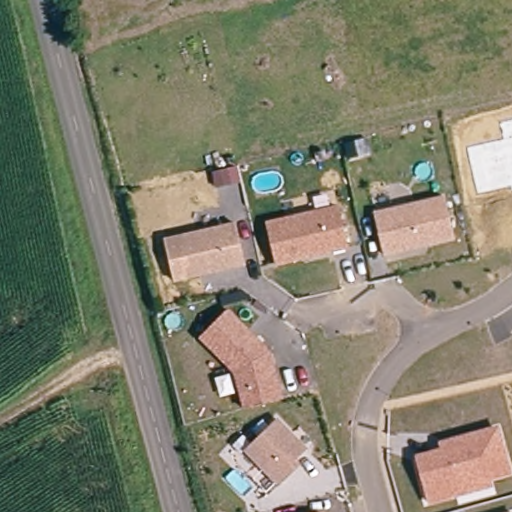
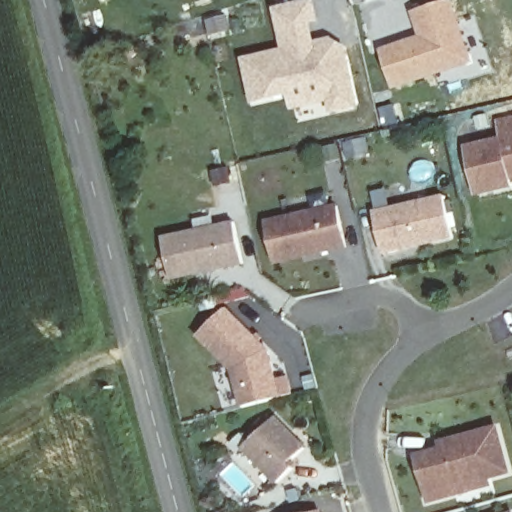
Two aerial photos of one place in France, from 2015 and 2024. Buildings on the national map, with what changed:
new [(311,0),(316,0),(321,23),(314,25),(317,41),(332,38),(348,49),(361,109),(330,116),(327,102),(291,111),(288,98),(253,106),(242,58),(282,49),(274,9),(311,0)]
new [(474,64),(394,91),(379,51),(419,38),(410,13),(450,0),(452,0),(474,64)]
new [(477,198),(466,147),(502,138),(498,121),(512,117),(512,190),(477,198)]
unchanged [(365,156),(347,160),(344,146),(361,142),(365,156)]
unchanged [(230,185),(216,188),(213,173),(227,170),(230,185)]
unchanged [(382,254),(372,213),(443,196),(452,238),(426,244),(414,247),(382,254)]
unchanged [(312,213),(337,208),(346,248),(322,254),(276,264),(267,223),(312,213)]
unchanged [(173,281),(164,239),(234,223),(243,265),(211,272),(200,275),(173,281)]
unchanged [(283,399),(246,410),(236,373),(200,339),(225,313),(228,313),(269,353),(283,399)]
unchanged [(291,464),(296,469),(280,484),(246,449),(277,418),(307,449),(291,464)]
unchanged [(456,487),(458,493),(429,502),(417,459),(445,451),(443,444),(454,441),(460,439),(497,428),(510,472),(456,487)]

